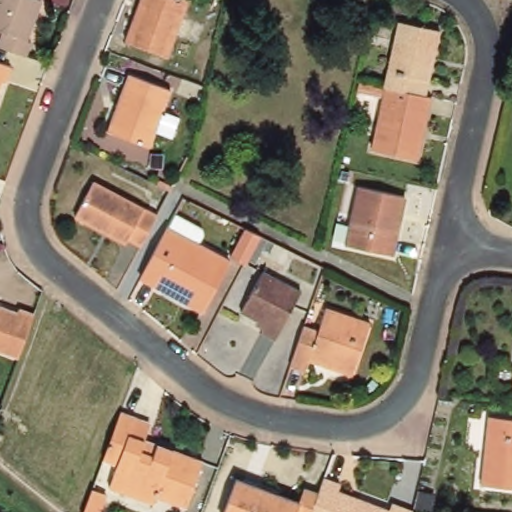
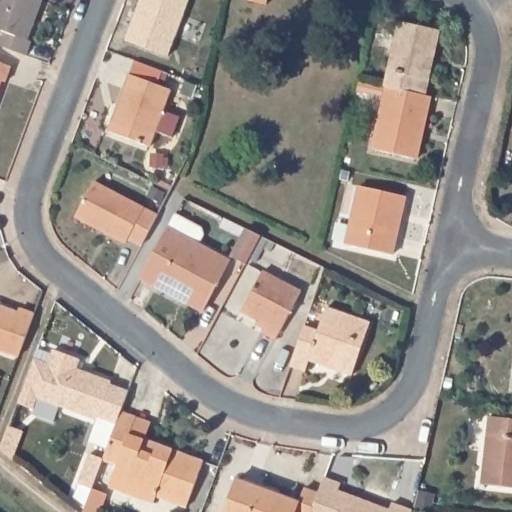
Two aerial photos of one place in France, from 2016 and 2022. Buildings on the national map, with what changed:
unchanged [(26,39),(31,41),(26,56),(0,46),(0,38),(2,32),(0,32),(0,0),(40,0),(26,39)]
unchanged [(170,55),(127,40),(140,0),(189,0),(170,55)]
unchanged [(262,2),(249,0),(262,0),(262,2)]
unchanged [(440,29),(434,58),(432,57),(427,78),(430,78),(426,95),(386,87),(382,86),(397,19),(440,29)]
unchanged [(5,85),(1,84),(0,85),(0,66),(11,70),(5,85)]
unchanged [(174,88),(167,110),(184,116),(177,136),(160,130),(154,144),(112,130),(131,74),(174,88)]
unchanged [(426,95),(431,96),(416,157),(372,147),(386,87),(426,95)]
unchanged [(407,197),(392,256),(346,245),(361,185),(407,197)]
unchanged [(156,218),(151,227),(140,248),(127,241),(124,246),(75,219),(93,186),(156,218)]
unchanged [(175,216),(200,230),(202,235),(197,245),(229,262),(202,311),(141,278),(164,236),(167,229),(175,216)]
unchanged [(265,242),(253,265),(245,261),(242,265),(231,258),(244,232),(257,238),(265,242)]
unchanged [(300,292),(275,340),(261,333),(263,328),(237,314),(260,270),(300,292)]
unchanged [(17,308),(32,314),(16,356),(0,350),(0,306),(16,312),(17,308)]
unchanged [(316,331),(322,308),(367,322),(352,375),(306,363),(303,372),(289,369),(301,329),(302,326),(316,331)]
new [(115,424),(99,419),(97,421),(59,407),(53,423),(31,415),(34,408),(17,403),(34,357),(47,362),(52,349),(81,359),(78,368),(112,380),(112,384),(127,390),(115,424)]
unchanged [(103,462),(122,415),(140,422),(133,438),(202,466),(186,505),(157,494),(152,507),(108,490),(117,467),(103,462)]
unchanged [(512,423),(512,491),(481,487),(488,420),(512,423)]
unchanged [(301,504),(307,489),(322,495),(315,512),(225,512),(237,479),(301,504)]
unchanged [(326,484),(327,481),(342,487),(338,496),(359,504),(360,501),(385,512),(315,512),(322,495),(326,484)]
unchanged [(82,512),(92,487),(107,494),(100,512),(82,512)]

